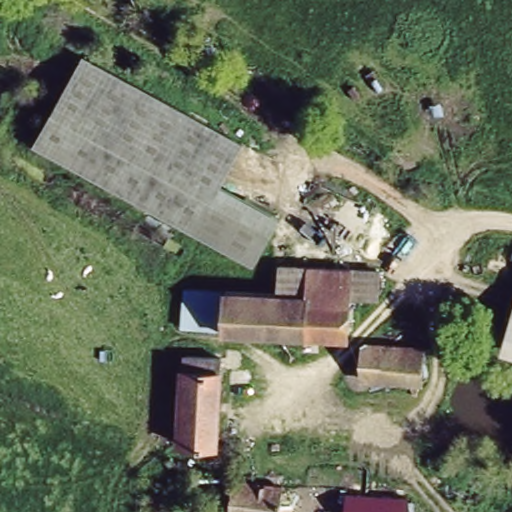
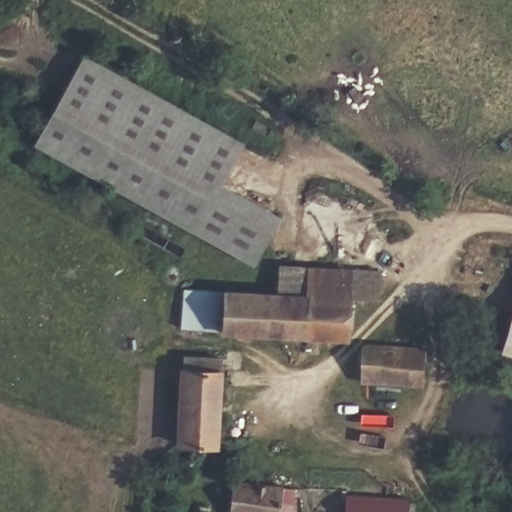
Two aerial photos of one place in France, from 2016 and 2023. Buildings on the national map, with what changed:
unchanged [(243,140),(197,229),(35,144),(88,52),(243,140)]
unchanged [(219,322),(223,283),(232,284),(280,289),(282,270),(350,279),(378,282),(376,306),(347,302),(342,337),(219,322)]
unchanged [(219,322),(190,319),(195,279),(223,283),(219,322)]
unchanged [(512,341),(512,353),(509,352),(512,341)]
unchanged [(422,346),(420,376),(361,374),(362,344),(422,346)]
unchanged [(182,366),(215,370),(208,445),(173,442),(182,366)]
unchanged [(295,509),(286,508),(286,512),(232,512),(235,476),(298,482),(295,509)]
unchanged [(414,512),(359,512),(360,491),(415,496),(414,512)]

